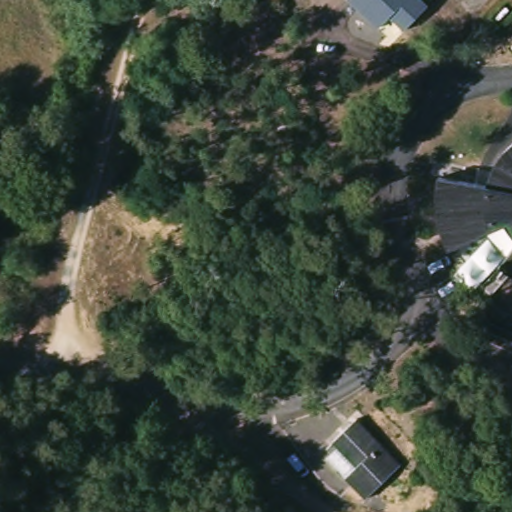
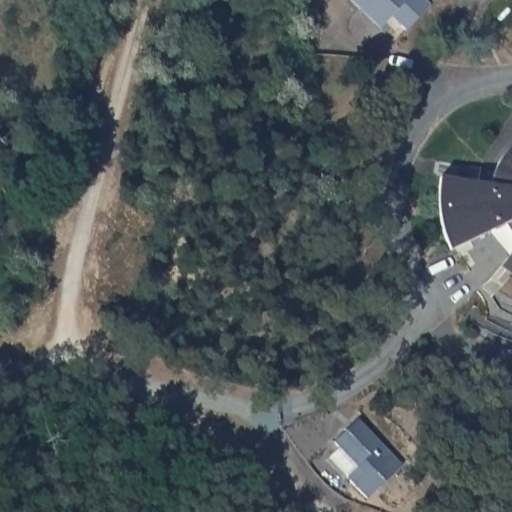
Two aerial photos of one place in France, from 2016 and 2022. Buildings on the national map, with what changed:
unchanged [(406,30),(389,16),(379,27),(351,0),(416,0),(425,9),(406,30)]
unchanged [(489,173),(495,160),(504,149),(512,142),(512,241),(499,224),(445,249),(436,225),(433,202),(435,176),(485,184),(489,173)]
unchanged [(496,265),(512,246),(512,277),(507,274),(496,265)]
unchanged [(360,423),(403,466),(367,499),(348,480),(359,470),(336,446),(360,423)]

